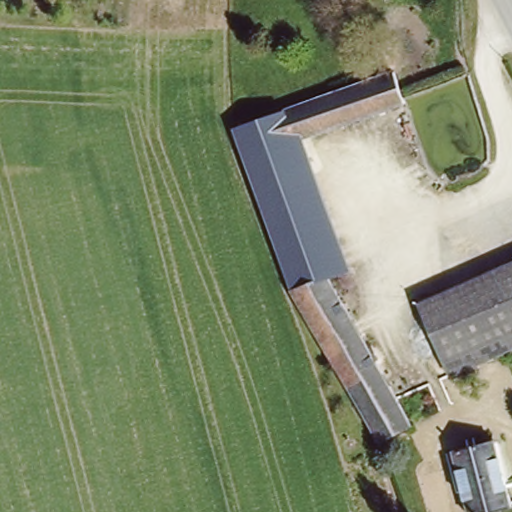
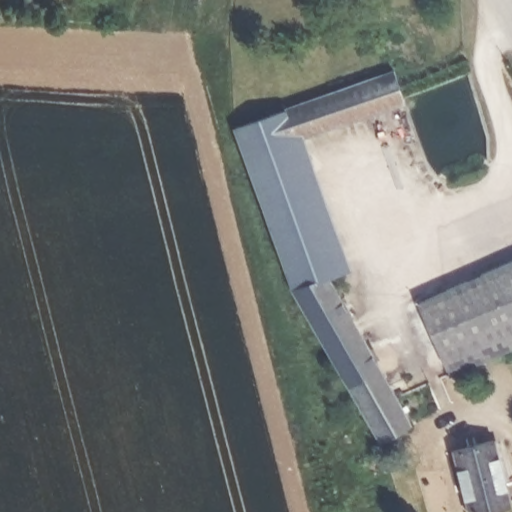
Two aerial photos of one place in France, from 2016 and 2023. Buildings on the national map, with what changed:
unchanged [(345,286),(337,290),(415,433),(377,450),(350,405),(337,382),(290,300),(233,131),(395,71),(406,103),(295,146),(345,286)]
unchanged [(447,371),(416,302),(512,259),(512,342),(447,371)]
unchanged [(496,441),(507,500),(465,507),(453,448),(496,441)]

